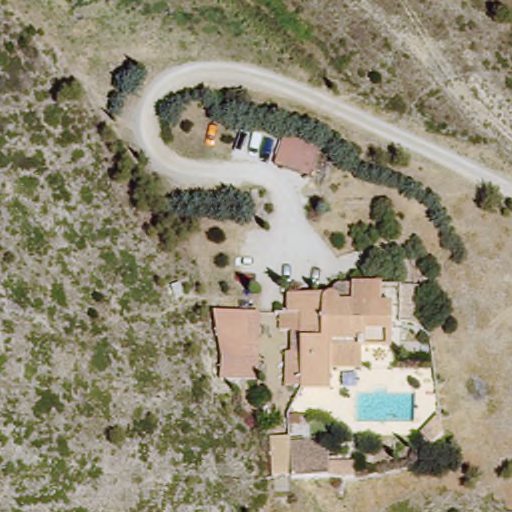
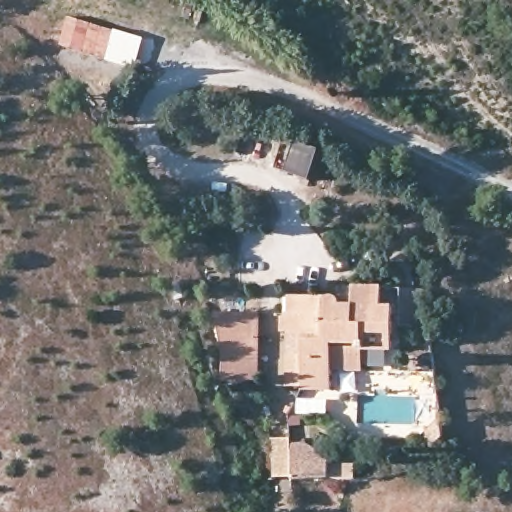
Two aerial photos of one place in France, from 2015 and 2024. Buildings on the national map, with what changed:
new [(59,45),(67,16),(144,37),(135,67),(59,45)]
unchanged [(395,360),(338,360),(337,391),(293,391),(294,333),(275,331),(278,289),(355,287),(357,270),(382,272),(382,295),(393,304),(395,360)]
unchanged [(264,308),(262,383),(228,382),(213,307),(264,308)]
unchanged [(271,478),(272,434),(291,434),(292,439),(305,437),(329,452),(328,460),(355,461),(354,477),(271,478)]

